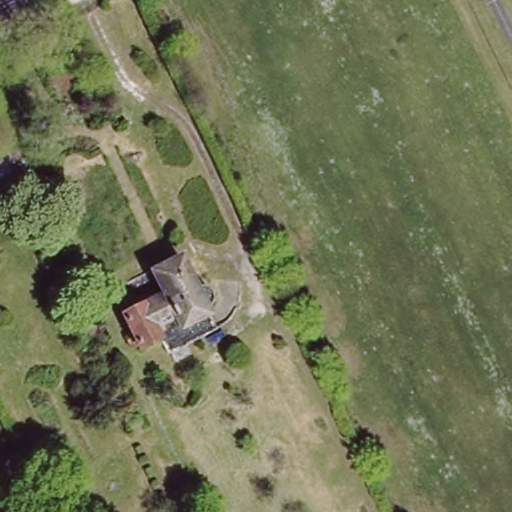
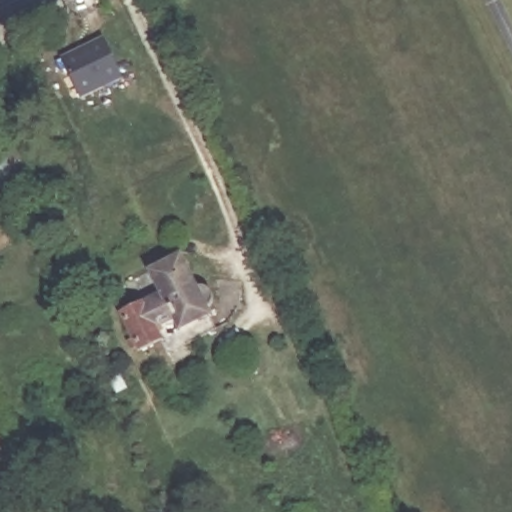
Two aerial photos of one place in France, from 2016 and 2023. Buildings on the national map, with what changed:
new [(62,56),(104,36),(125,79),(83,99),(62,56)]
unchanged [(13,151),(32,190),(15,200),(32,235),(26,239),(0,186),(0,158),(13,151)]
unchanged [(182,259),(195,285),(205,284),(212,289),(213,301),(208,309),(210,314),(197,321),(182,329),(175,317),(167,321),(158,325),(164,337),(143,348),(125,313),(140,305),(138,300),(148,295),(151,300),(164,294),(153,273),(182,259)]

